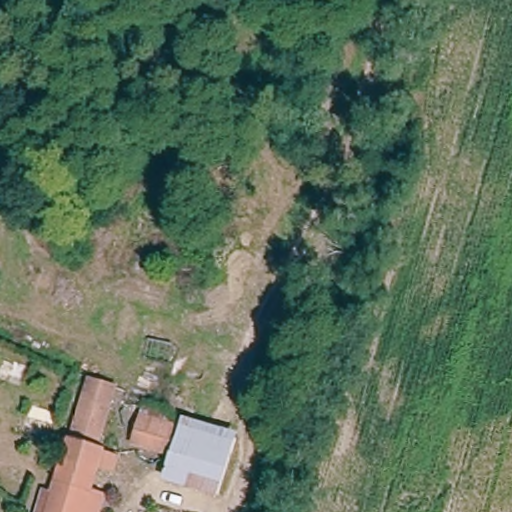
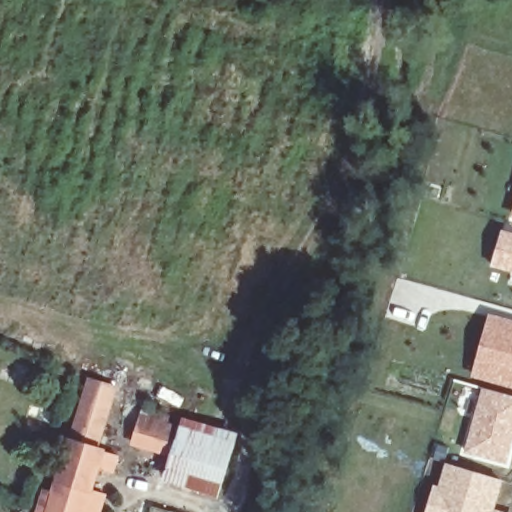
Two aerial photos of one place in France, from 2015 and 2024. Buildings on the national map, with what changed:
new [(512,232),(512,272),(491,267),(500,229),(512,232)]
new [(480,353),(491,313),(512,319),(512,382),(503,379),(475,371),(480,353)]
new [(503,379),(512,382),(512,432),(504,463),(465,452),(487,375),(503,379)]
unchanged [(70,427),(84,381),(110,390),(92,447),(112,454),(107,475),(94,471),(87,497),(99,501),(95,512),(42,512),(70,427)]
unchanged [(127,442),(137,406),(177,417),(165,454),(127,442)]
unchanged [(156,480),(165,454),(177,417),(234,433),(212,496),(156,480)]
new [(500,480),(491,512),(493,512),(430,512),(436,492),(441,493),(448,465),(500,480)]

